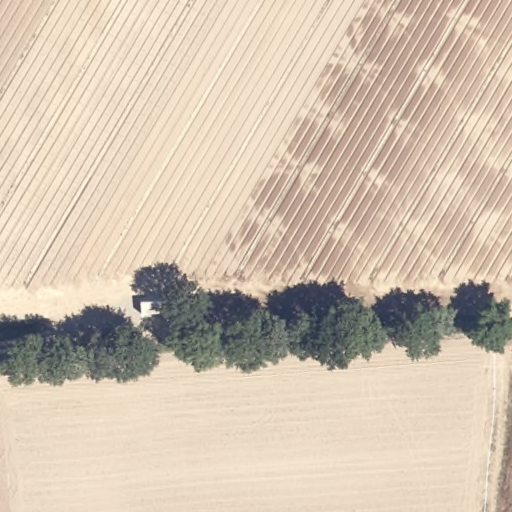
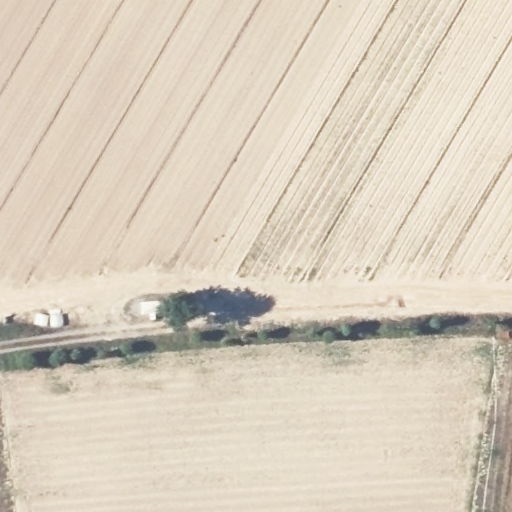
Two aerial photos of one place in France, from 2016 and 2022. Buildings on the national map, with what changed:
[]

